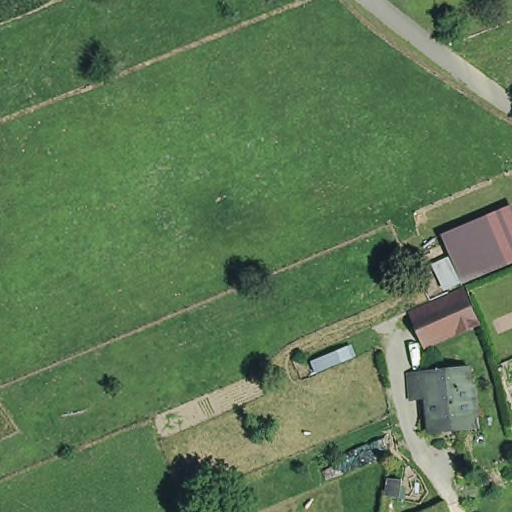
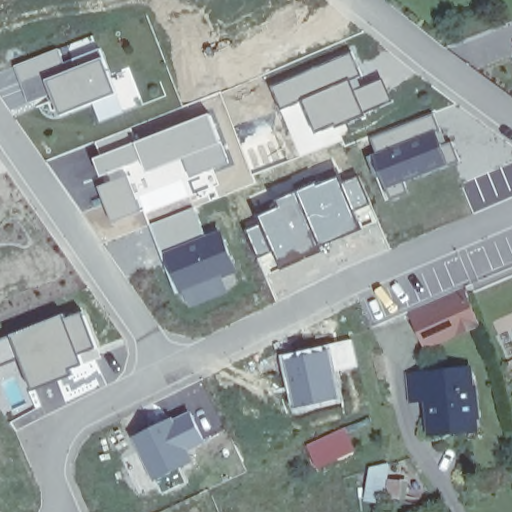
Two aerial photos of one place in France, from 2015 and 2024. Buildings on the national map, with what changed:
new [(56,47),(63,62),(95,50),(115,88),(52,117),(46,104),(28,107),(14,65),(56,47)]
new [(351,52),(362,81),(352,84),(355,92),(385,80),(393,102),(307,134),(295,105),(270,112),(260,87),(351,52)]
new [(215,112),(235,157),(136,196),(140,210),(113,219),(89,157),(215,112)]
new [(428,129),(445,175),(377,205),(357,156),(428,129)]
new [(268,215),(265,206),(322,187),(344,236),(305,252),(307,259),(265,275),(243,225),(268,215)]
new [(186,204),(203,235),(222,227),(242,272),(178,297),(144,225),(186,204)]
demolished [(445,297),(435,267),(450,261),(447,234),(512,208),(512,267),(466,287),(445,297)]
unchanged [(415,320),(465,297),(480,330),(430,352),(415,320)]
new [(87,352),(68,358),(71,368),(61,372),(65,378),(25,395),(14,361),(0,367),(0,343),(80,317),(87,352)]
new [(352,337),(358,366),(335,372),(340,398),(291,409),(277,354),(327,343),(352,337)]
unchanged [(424,407),(409,408),(406,380),(426,378),(426,382),(467,378),(469,396),(471,396),(475,422),(431,427),(426,427),(424,407)]
new [(189,410),(205,441),(189,450),(195,461),(153,482),(130,436),(189,410)]
new [(355,453),(313,472),(306,447),(345,431),(355,453)]
unchanged [(401,482),(400,498),(387,497),(389,480),(401,482)]

